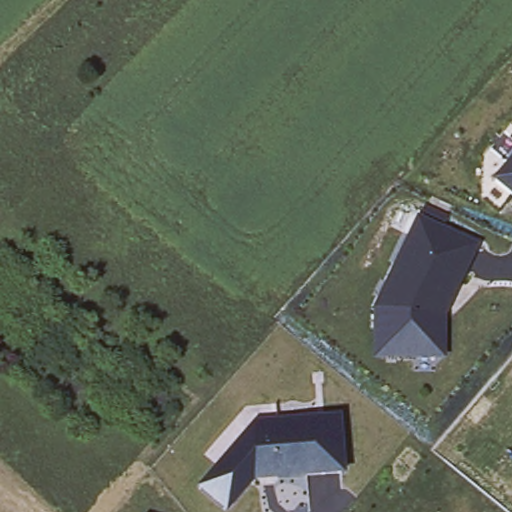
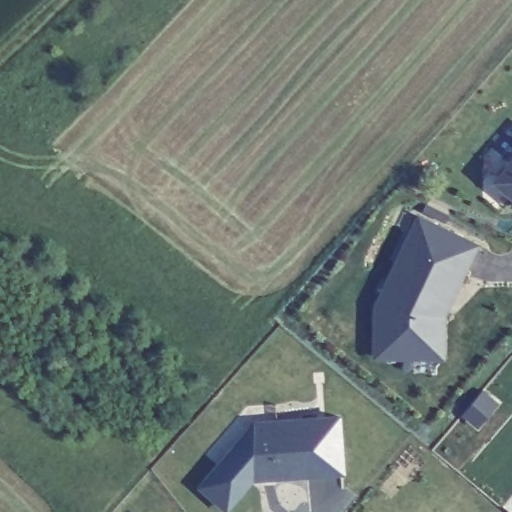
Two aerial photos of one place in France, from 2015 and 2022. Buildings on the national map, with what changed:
unchanged [(494,180),(512,159),(512,195),(494,180)]
unchanged [(447,314),(446,359),(373,357),(374,306),(420,214),(475,244),(447,314)]
unchanged [(252,478),(226,509),(200,486),(248,429),(255,423),(276,421),(338,417),(342,471),(273,477),(262,477),(252,478)]

